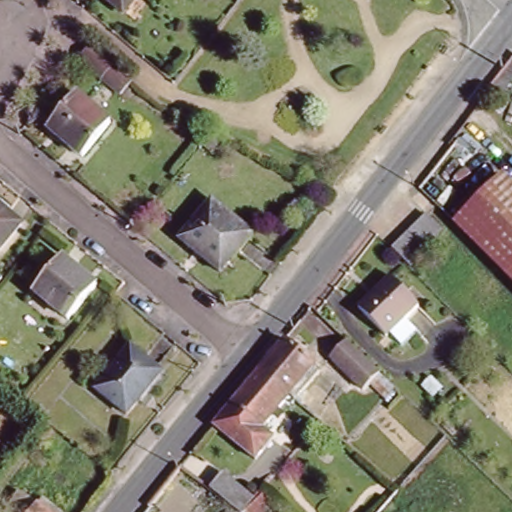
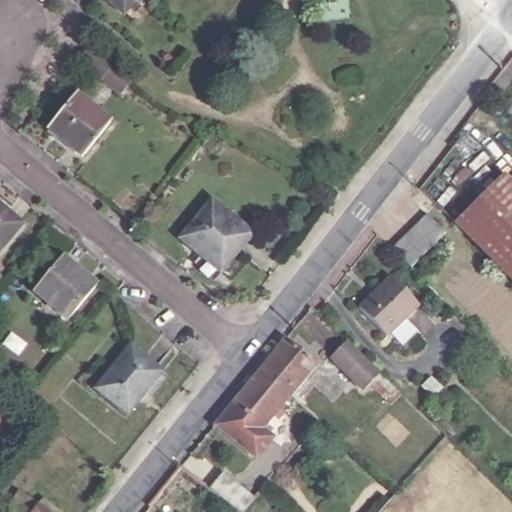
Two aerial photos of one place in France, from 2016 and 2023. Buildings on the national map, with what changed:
unchanged [(111,0),(130,0),(122,9),(111,0)]
unchanged [(133,77),(122,91),(102,76),(114,61),(133,77)]
unchanged [(110,121),(80,154),(48,126),(75,93),(110,121)]
unchanged [(220,135),(211,146),(205,142),(215,130),(220,135)]
unchanged [(460,224),(512,176),(512,276),(460,224)]
unchanged [(253,233),(220,271),(182,238),(213,200),(253,233)]
unchanged [(0,247),(0,204),(21,223),(0,247)]
unchanged [(452,227),(416,264),(400,247),(437,211),(452,227)]
unchanged [(95,284),(65,317),(33,291),(62,257),(95,284)]
unchanged [(356,305),(368,295),(386,273),(415,300),(399,318),(411,329),(407,333),(397,345),(356,305)]
unchanged [(0,279),(0,276),(2,278),(0,279)]
unchanged [(315,370),(290,400),(255,370),(279,340),(315,370)]
unchanged [(163,370),(128,411),(100,388),(135,346),(163,370)]
unchanged [(401,393),(394,400),(379,385),(368,396),(335,364),(353,346),(401,393)]
unchanged [(290,400),(287,404),(282,400),(262,424),(267,429),(262,435),(255,430),(235,454),(205,429),(255,370),(290,400)]
unchanged [(257,504),(250,512),(233,512),(205,490),(220,474),(257,504)]
unchanged [(57,512),(33,512),(42,501),(57,512)]

